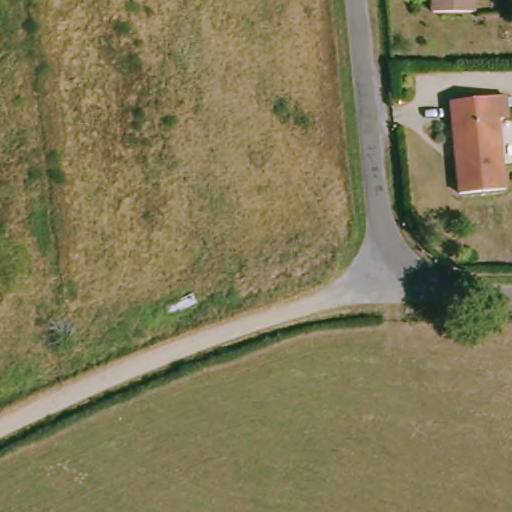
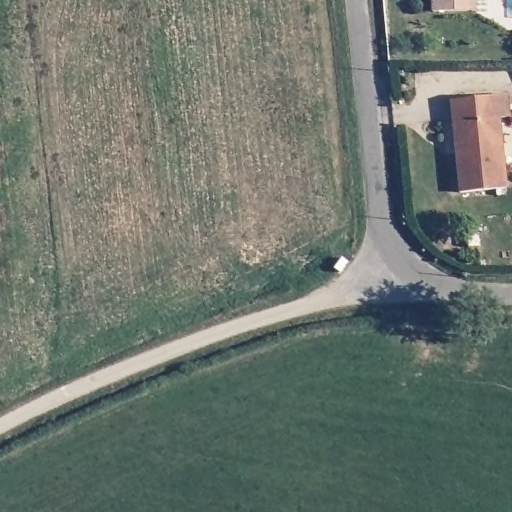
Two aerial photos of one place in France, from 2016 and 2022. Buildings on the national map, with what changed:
unchanged [(471,0),(470,14),(427,12),(427,0),(471,0)]
unchanged [(454,151),(458,151),(456,123),(450,124),(448,102),(501,99),(503,120),(494,121),(500,190),(457,194),(454,151)]

